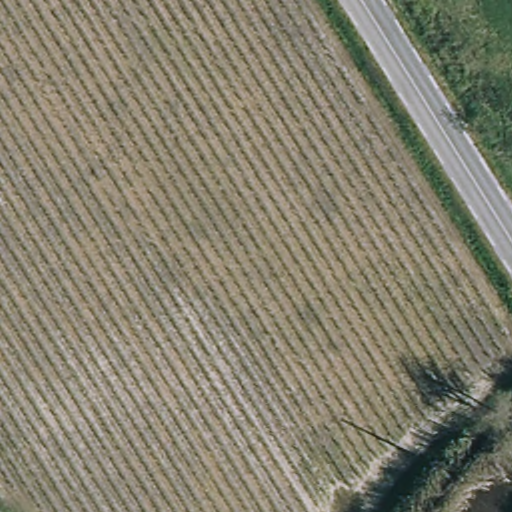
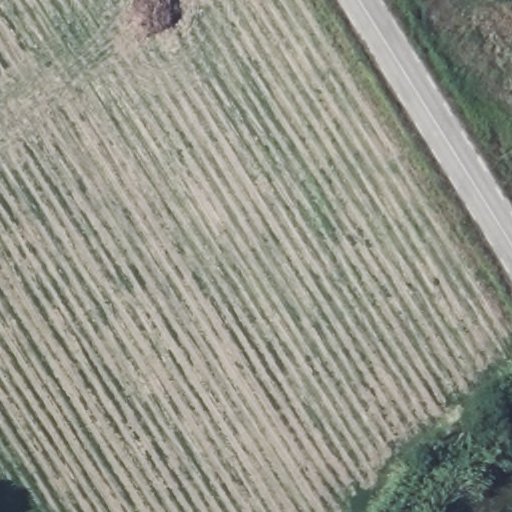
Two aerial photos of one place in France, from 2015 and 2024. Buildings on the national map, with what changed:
[]

